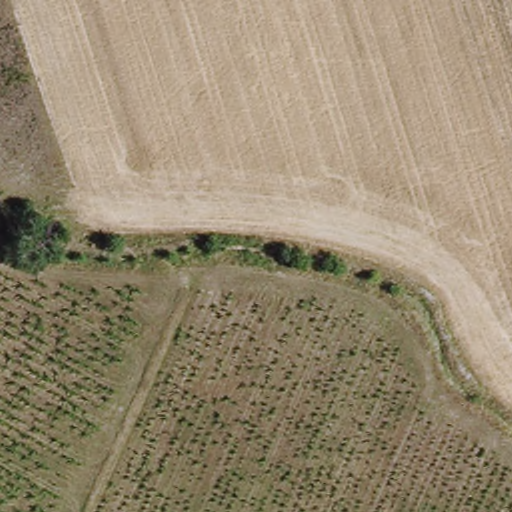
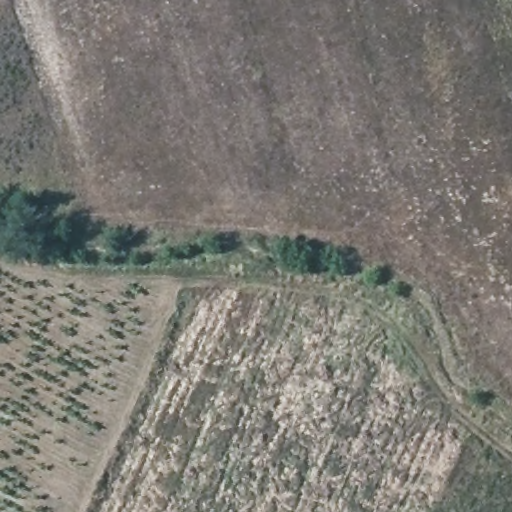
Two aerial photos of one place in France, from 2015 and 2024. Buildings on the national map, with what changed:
[]

